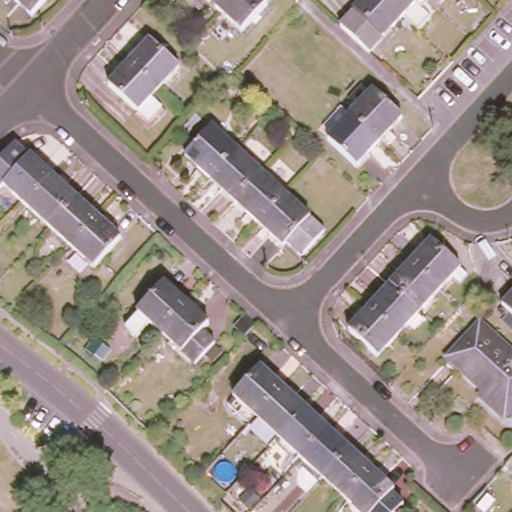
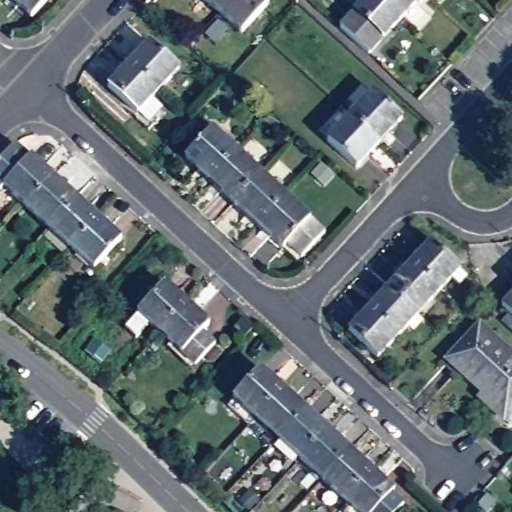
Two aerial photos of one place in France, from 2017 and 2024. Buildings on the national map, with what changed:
unchanged [(23,5),(21,5),(16,0),(51,0),(36,16),(23,5)]
unchanged [(224,0),(218,7),(210,0),(224,0)]
unchanged [(218,7),(224,0),(268,0),(241,29),(218,7)]
unchanged [(341,24),(363,0),(390,0),(403,13),(370,50),(341,24)]
unchanged [(430,11),(418,26),(403,13),(390,0),(426,0),(422,5),(430,11)]
unchanged [(137,48),(138,49),(150,36),(180,64),(159,86),(128,58),(137,48)]
unchanged [(152,94),(165,106),(151,121),(108,81),(120,68),(120,67),(128,58),(159,86),(152,94)]
unchanged [(372,89),(400,115),(388,128),(390,130),(381,140),(351,112),(372,89)]
unchanged [(370,151),(368,150),(356,162),(329,136),(351,112),(381,140),(370,151)]
unchanged [(195,165),(196,163),(182,151),(207,122),(234,146),(207,176),(195,165)]
unchanged [(220,184),(218,186),(207,176),(234,146),(258,169),(234,197),(220,184)]
unchanged [(25,160),(29,156),(41,167),(43,166),(52,175),(25,205),(2,185),(0,188),(0,159),(11,148),(25,160)]
unchanged [(242,209),(245,207),(234,197),(258,169),(283,192),(256,221),(242,209)]
unchanged [(25,205),(52,175),(65,186),(62,188),(74,198),(48,225),(25,205)]
unchanged [(323,229),(299,255),(282,240),(281,241),(267,228),(265,230),(256,221),(283,192),(323,229)]
unchanged [(48,225),(74,198),(86,209),(88,207),(98,217),(71,247),(48,225)]
unchanged [(107,225),(106,227),(120,239),(94,267),(71,247),(98,217),(107,225)]
unchanged [(420,250),(421,252),(430,242),(459,268),(457,269),(465,276),(457,286),(450,279),(439,290),(409,262),(420,250)]
unchanged [(400,275),(398,274),(409,262),(439,290),(418,313),(390,287),(400,275)]
unchanged [(137,307),(161,279),(172,288),(174,286),(186,297),(159,327),(137,307)]
unchanged [(398,335),(368,308),(379,296),(380,297),(390,287),(418,313),(398,335)]
unchanged [(512,312),(501,302),(512,291),(512,312)]
unchanged [(195,360),(182,348),(159,327),(186,297),(196,306),(195,308),(208,319),(201,326),(215,338),(195,360)]
unchanged [(377,357),(349,333),(358,321),(357,319),(368,308),(398,335),(377,357)]
unchanged [(512,410),(507,416),(488,401),(492,397),(451,359),(483,325),(512,351),(512,410)]
unchanged [(291,399),(303,410),(277,438),(255,417),(248,424),(226,404),(233,398),(231,396),(257,367),(268,378),(271,376),(283,387),(293,396),(291,399)]
unchanged [(311,418),(315,416),(327,428),(300,458),(277,438),(303,410),(311,418)]
unchanged [(300,458),(327,428),(336,436),(335,438),(348,450),(322,478),(300,458)]
unchanged [(357,459),(360,456),(372,468),(344,497),(322,478),(348,450),(357,459)]
unchanged [(382,476),(380,479),(391,489),(370,512),(360,512),(344,497),(372,468),(382,476)]

